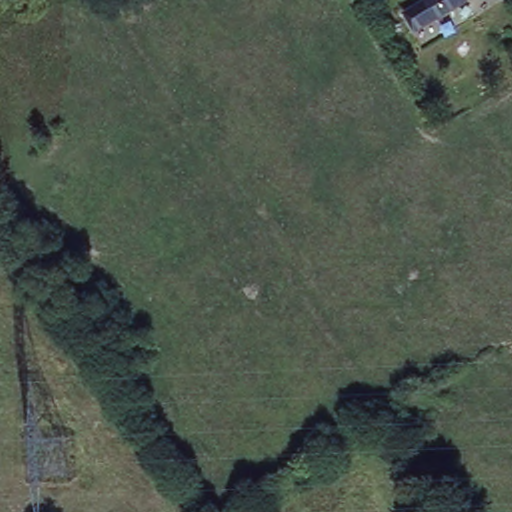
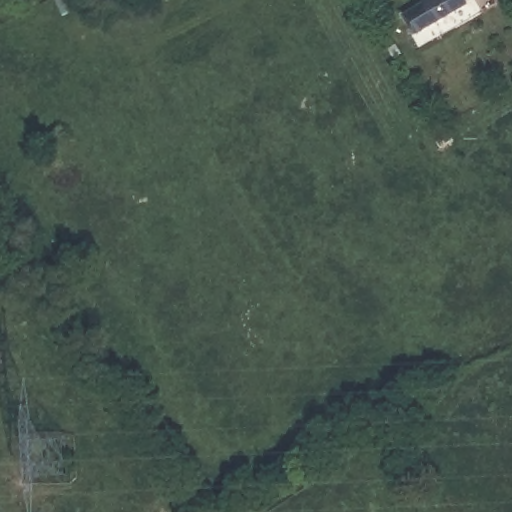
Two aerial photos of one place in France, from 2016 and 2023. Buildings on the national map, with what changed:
unchanged [(425,0),(469,0),(456,8),(416,31),(404,13),(425,0)]

